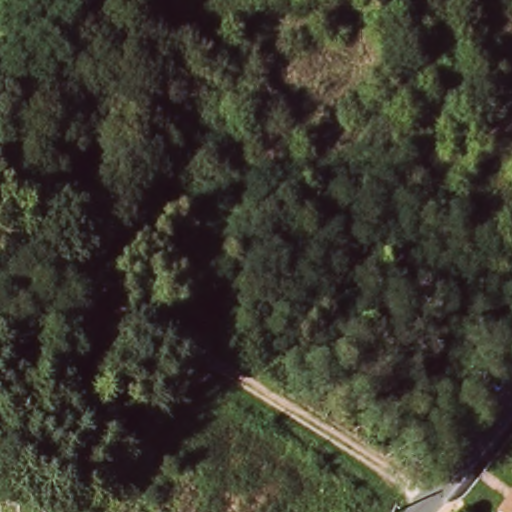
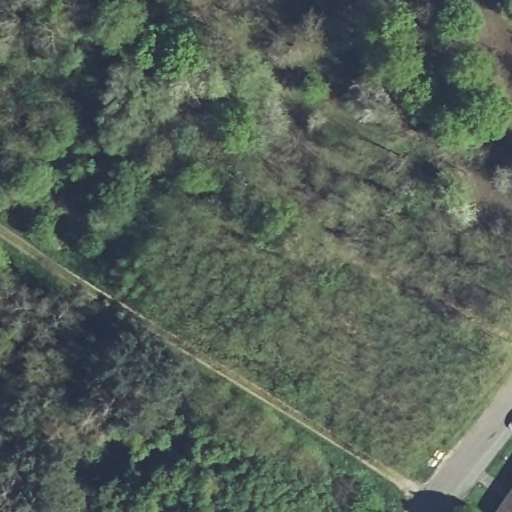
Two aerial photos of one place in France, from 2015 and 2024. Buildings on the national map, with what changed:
unchanged [(512,486),(512,512),(493,512),(492,512),(512,486)]

